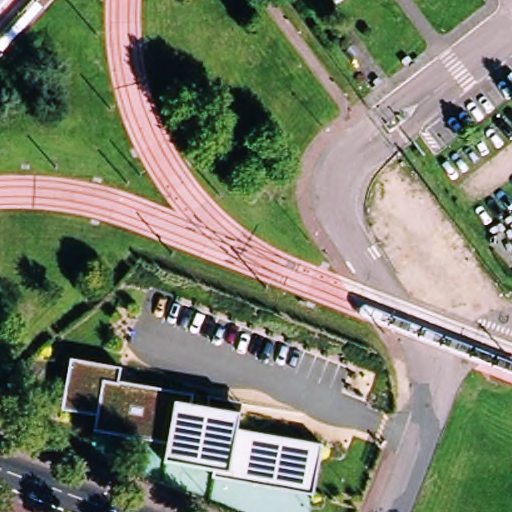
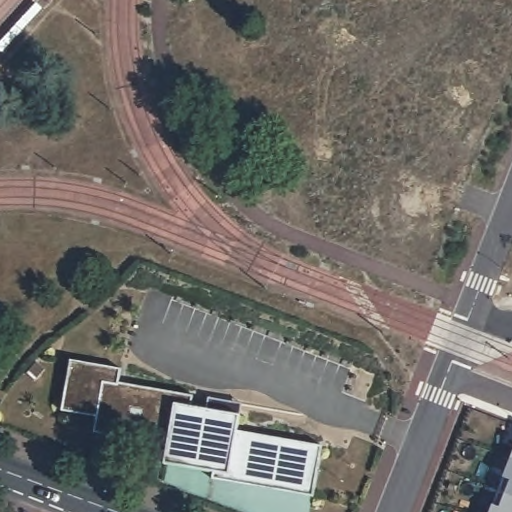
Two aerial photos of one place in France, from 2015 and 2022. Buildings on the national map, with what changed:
unchanged [(314,497),(214,480),(215,473),(166,465),(168,446),(95,432),(97,417),(64,412),(72,360),(121,367),(119,383),(194,396),(192,405),(241,413),(237,431),(323,447),(314,497)]
new [(512,452),(512,512),(489,512),(512,452)]

